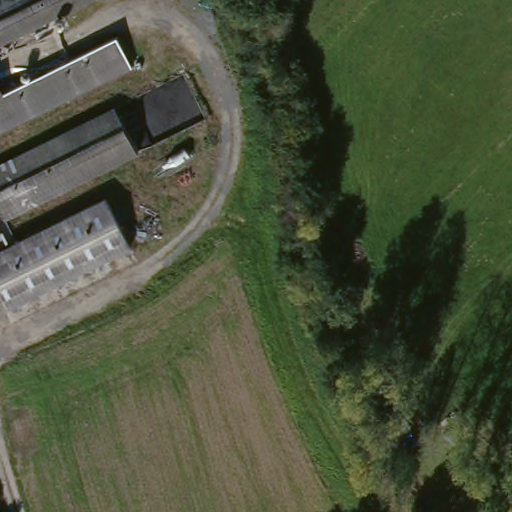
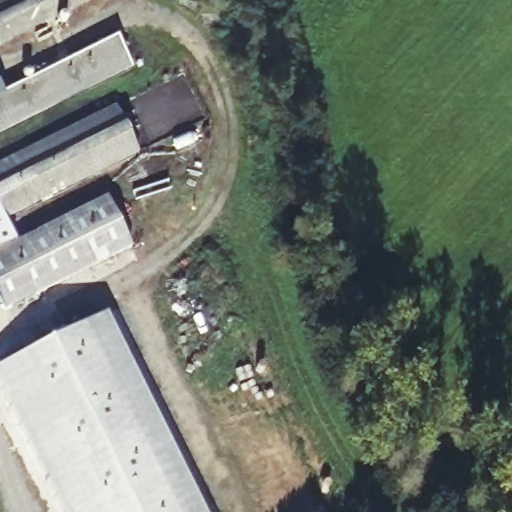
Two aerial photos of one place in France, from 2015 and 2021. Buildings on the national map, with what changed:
unchanged [(0,46),(0,0),(94,0),(0,46)]
unchanged [(0,93),(112,41),(126,72),(0,132),(0,93)]
unchanged [(2,219),(0,214),(0,164),(116,108),(140,156),(2,219)]
unchanged [(124,252),(0,311),(0,250),(100,202),(124,252)]
new [(202,512),(62,512),(0,387),(0,368),(105,316),(202,512)]

